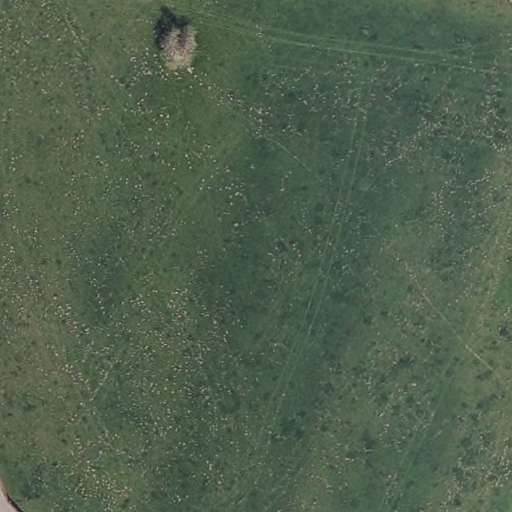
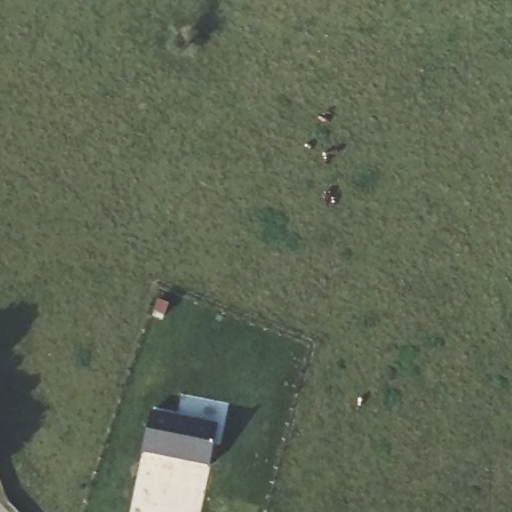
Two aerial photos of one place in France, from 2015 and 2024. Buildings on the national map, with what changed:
new [(149,405),(214,419),(206,463),(141,451),(149,405)]

